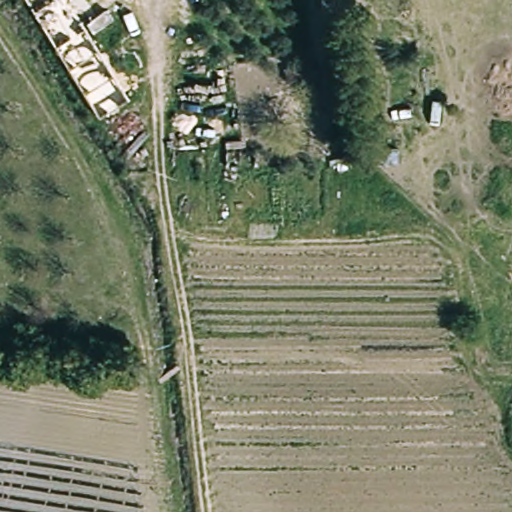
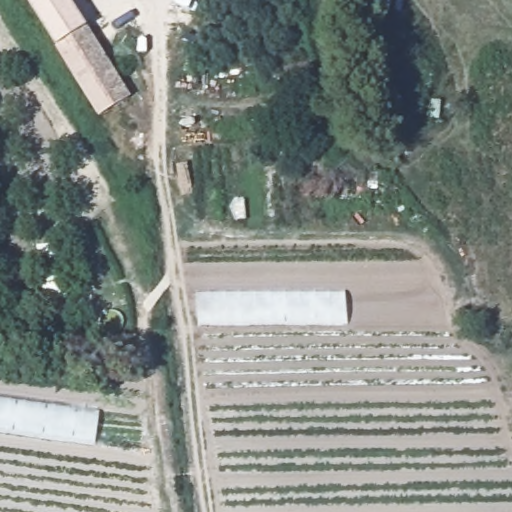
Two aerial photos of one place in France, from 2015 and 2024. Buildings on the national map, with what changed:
new [(126,107),(101,123),(24,0),(59,0),(126,107)]
new [(347,295),(348,326),(198,328),(196,297),(347,295)]
new [(99,413),(97,445),(0,432),(0,400),(99,413)]

